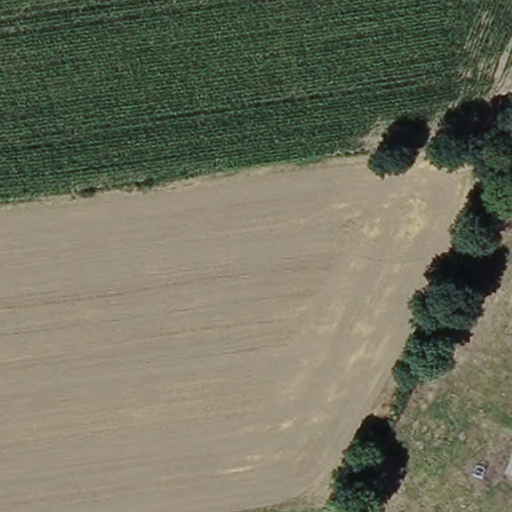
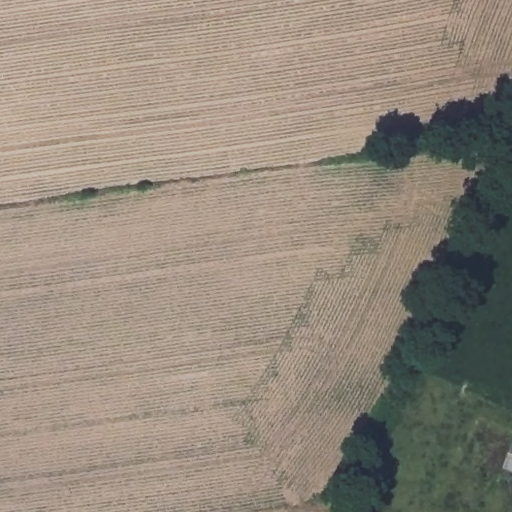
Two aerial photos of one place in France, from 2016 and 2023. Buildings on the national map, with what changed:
unchanged [(512,472),(510,471),(512,466),(512,472)]

